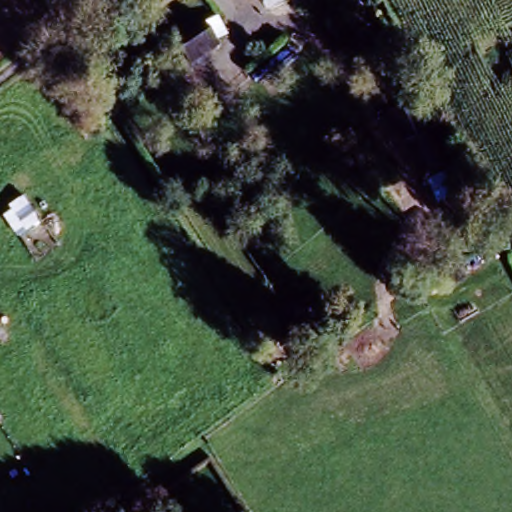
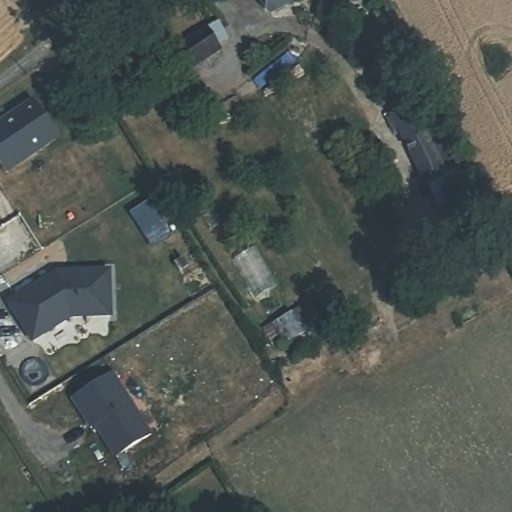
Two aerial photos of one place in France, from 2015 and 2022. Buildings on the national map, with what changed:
unchanged [(263,24),(250,0),(310,0),(263,24)]
unchanged [(183,40),(194,33),(206,27),(218,47),(207,54),(194,60),(183,40)]
new [(0,163),(0,123),(36,100),(60,138),(6,173),(0,163)]
unchanged [(419,185),(383,114),(408,100),(419,121),(429,115),(459,176),(426,193),(421,184),(419,185)]
demolished [(53,196),(66,218),(29,240),(16,218),(53,196)]
new [(152,248),(141,231),(131,215),(150,203),(160,220),(171,237),(152,248)]
unchanged [(438,227),(447,242),(413,261),(404,246),(438,227)]
new [(109,316),(69,317),(31,341),(7,303),(50,277),(64,276),(64,273),(108,271),(109,316)]
new [(151,434),(115,457),(91,419),(87,421),(72,398),(112,373),(151,434)]

